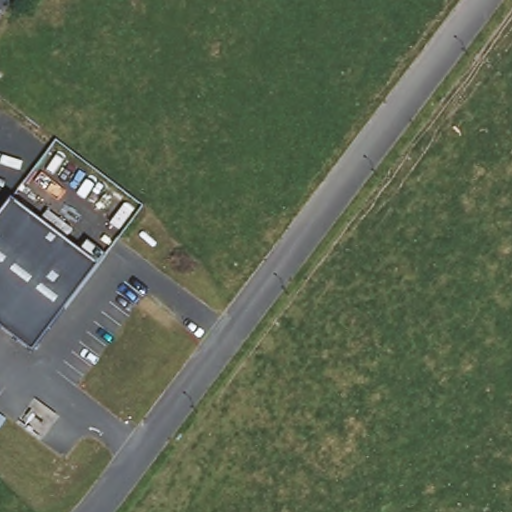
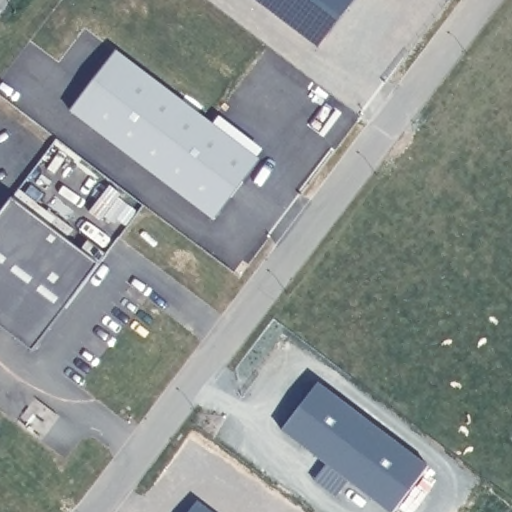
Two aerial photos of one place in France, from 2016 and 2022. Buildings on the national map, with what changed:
new [(212,221),(70,112),(116,50),(259,160),(212,221)]
unchanged [(32,350),(0,325),(0,219),(12,202),(97,263),(32,350)]
new [(336,496),(314,479),(325,463),(282,431),(318,382),(429,465),(393,512),(389,512),(349,481),(336,496)]

